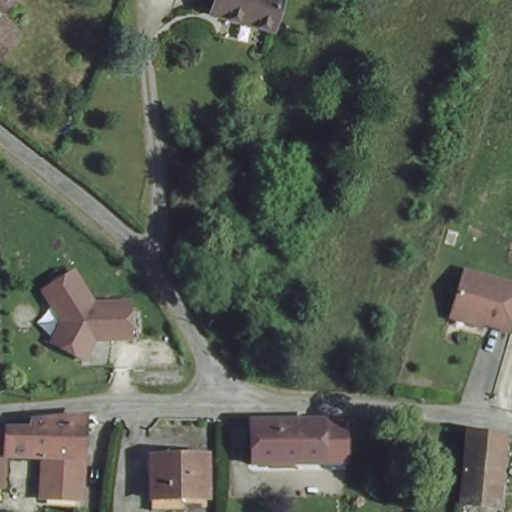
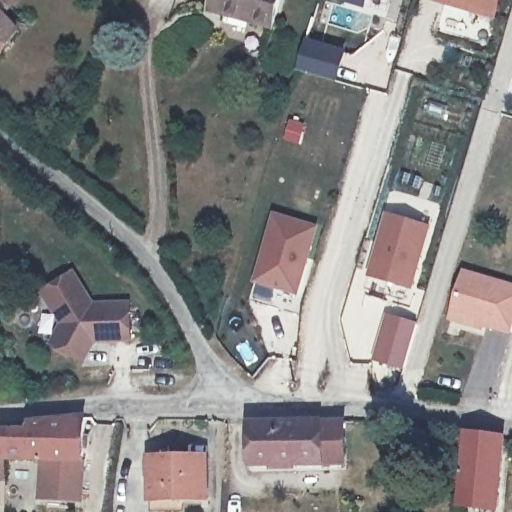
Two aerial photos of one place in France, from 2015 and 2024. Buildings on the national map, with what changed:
unchanged [(0,8),(0,0),(16,0),(5,12),(0,8)]
unchanged [(276,24),(215,7),(217,0),(283,0),(276,24)]
new [(342,0),(368,0),(365,10),(341,2),(342,0)]
new [(491,16),(436,0),(497,0),(491,16)]
unchanged [(0,52),(0,15),(18,30),(0,52)]
new [(337,81),(295,70),(306,36),(347,50),(337,81)]
new [(298,296),(251,283),(273,212),(319,226),(298,296)]
new [(412,290),(366,277),(385,212),(431,226),(412,290)]
unchanged [(87,301),(122,301),(123,335),(88,336),(77,356),(47,338),(57,319),(38,286),(69,269),(87,301)]
unchanged [(496,331),(439,313),(452,270),(510,287),(496,331)]
unchanged [(22,425),(77,421),(72,499),(32,498),(34,462),(0,461),(0,432),(21,431),(22,425)]
unchanged [(343,423),(343,469),(257,468),(256,423),(343,423)]
unchanged [(491,512),(461,505),(471,441),(505,445),(498,512),(491,512)]
unchanged [(154,499),(153,457),(208,456),(210,497),(154,499)]

